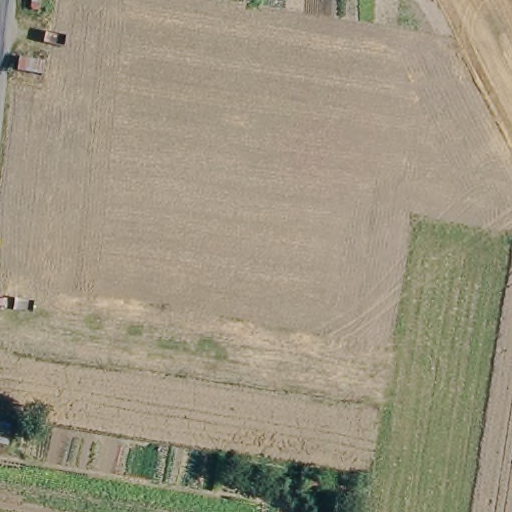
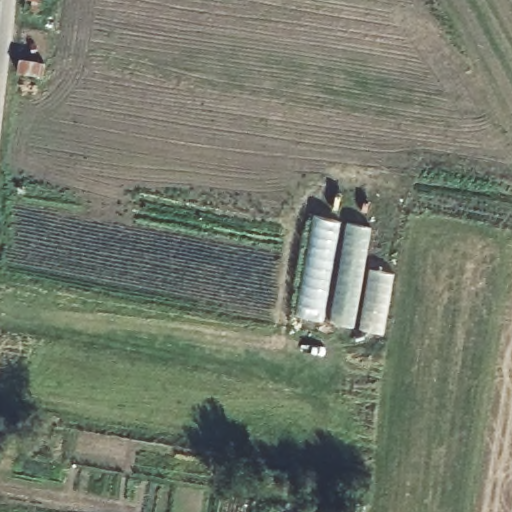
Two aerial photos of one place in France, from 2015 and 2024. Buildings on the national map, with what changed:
unchanged [(41,59),(40,83),(19,82),(19,59),(41,59)]
new [(365,266),(396,272),(386,332),(296,313),(315,212),(371,225),(365,266)]

